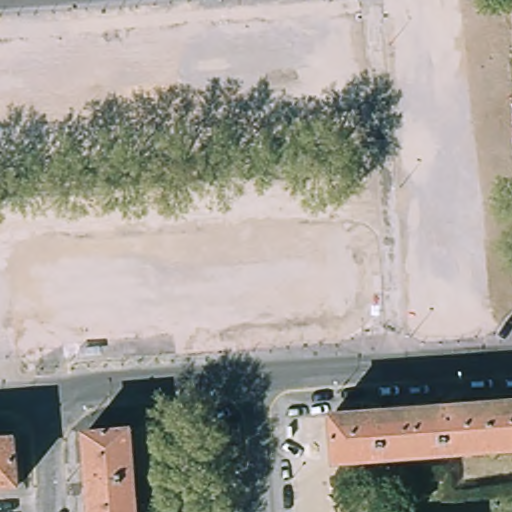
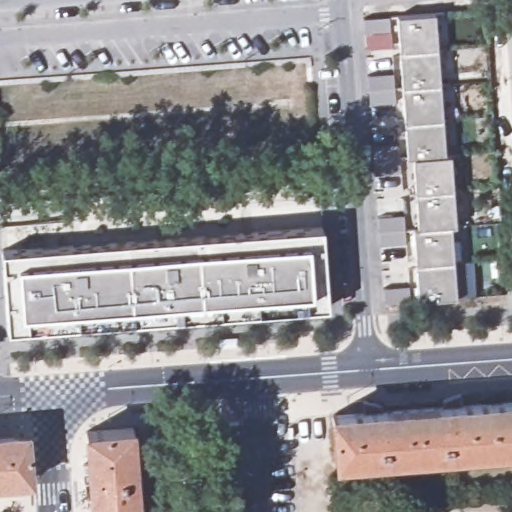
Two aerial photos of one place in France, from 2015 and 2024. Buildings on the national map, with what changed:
new [(441,121),(445,154),(450,153),(455,225),(451,226),(455,297),(418,300),(412,230),(419,229),(414,157),(408,158),(396,16),(433,14),(441,121)]
new [(390,17),(390,31),(365,33),(364,18),(390,17)]
new [(370,104),(369,90),(368,75),(394,73),(395,88),(396,102),(370,104)]
new [(375,175),(374,161),(373,146),(399,144),(400,159),(401,173),(375,175)]
demolished [(289,158),(309,157),(310,163),(311,169),(289,171),(289,164),(289,158)]
new [(380,246),(380,231),(378,217),(405,215),(405,230),(407,243),(380,246)]
new [(328,306),(8,329),(1,250),(322,227),(328,306)]
new [(410,286),(410,301),(385,303),(384,288),(410,286)]
unchanged [(334,416),(384,413),(434,409),(512,404),(512,449),(338,461),(334,416)]
unchanged [(242,422),(243,446),(228,447),(227,422),(242,422)]
unchanged [(132,430),(138,512),(97,512),(92,432),(132,430)]
unchanged [(18,485),(0,486),(0,440),(15,439),(18,484),(18,485)]

